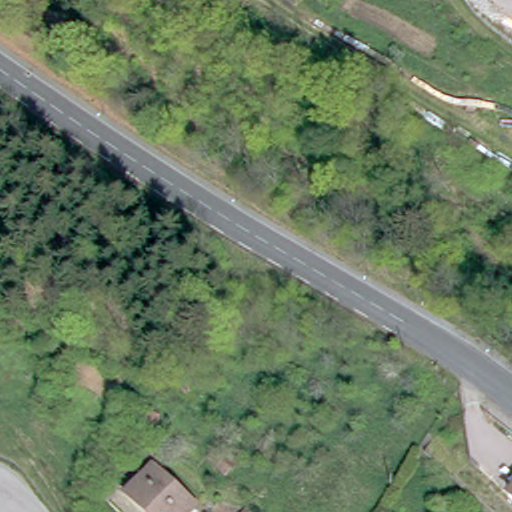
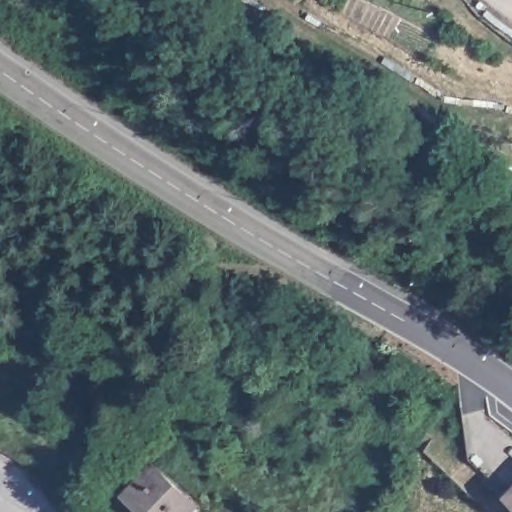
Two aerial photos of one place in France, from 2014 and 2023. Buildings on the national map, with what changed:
unchanged [(191,512),(149,512),(130,493),(155,466),(197,506),(191,512)]
unchanged [(510,494),(512,492),(512,497),(510,496),(510,494)]

